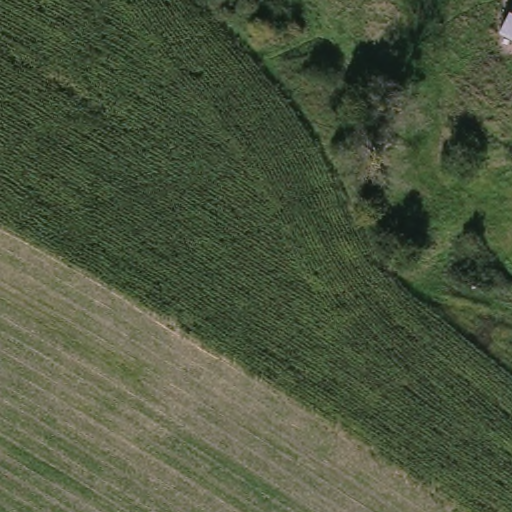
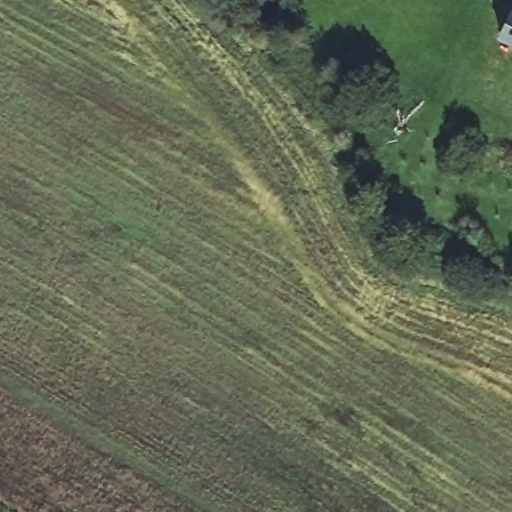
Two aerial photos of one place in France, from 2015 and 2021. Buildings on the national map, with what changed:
unchanged [(512,26),(512,32),(510,31),(512,26)]

